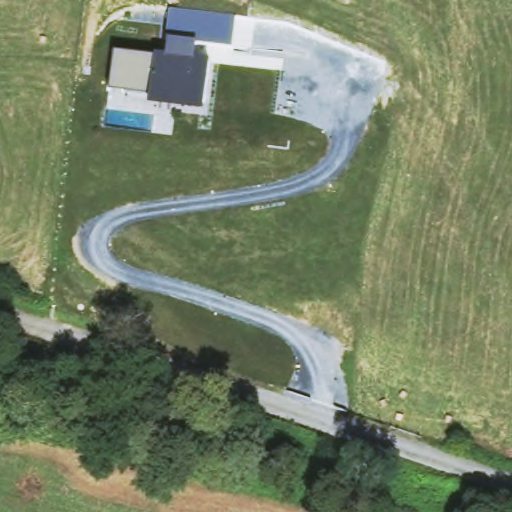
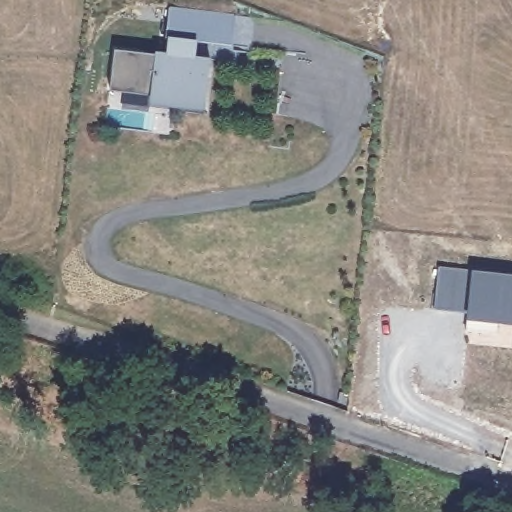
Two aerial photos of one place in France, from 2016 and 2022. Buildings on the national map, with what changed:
unchanged [(234,15),(230,45),(195,41),(192,58),(207,59),(202,101),(107,88),(112,47),(164,54),(166,37),(163,37),(167,6),(234,15)]
new [(496,334),(465,328),(467,318),(468,313),(435,311),(440,268),(472,272),(472,268),(512,273),(512,324),(499,323),(496,334)]

